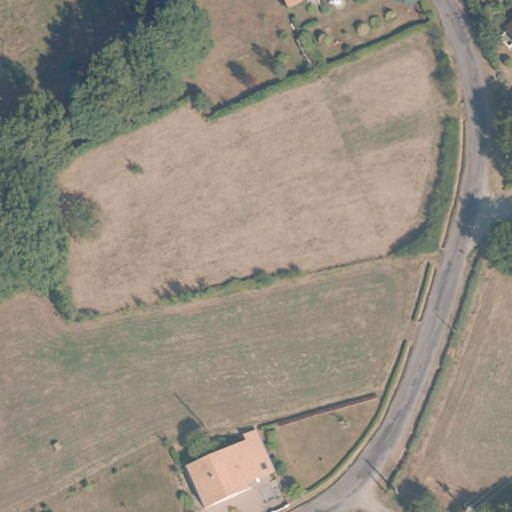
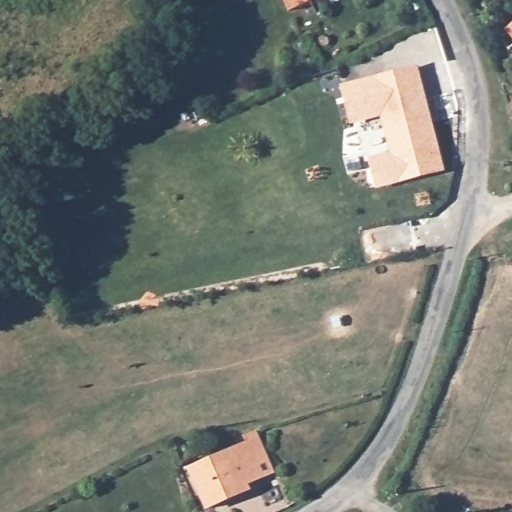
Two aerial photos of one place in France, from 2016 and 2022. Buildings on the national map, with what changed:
unchanged [(291,7),(288,0),(306,0),(291,7)]
unchanged [(512,21),(512,39),(503,29),(512,21)]
new [(375,189),(367,157),(389,152),(380,117),(350,124),(340,84),(416,65),(443,171),(375,189)]
unchanged [(512,122),(510,124),(505,108),(512,104),(512,122)]
unchanged [(258,441),(267,473),(253,477),(255,491),(210,502),(196,457),(258,441)]

